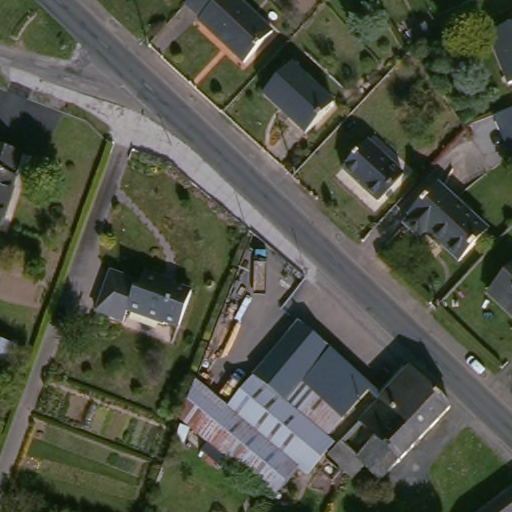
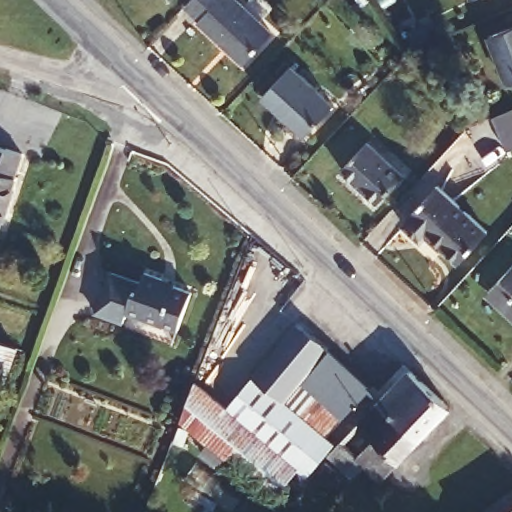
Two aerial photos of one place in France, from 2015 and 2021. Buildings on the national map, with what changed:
unchanged [(199,21),(200,19),(186,5),(191,0),(238,0),(273,32),(244,63),(199,21)]
unchanged [(431,37),(414,44),(408,31),(426,24),(431,37)]
unchanged [(509,84),(490,36),(512,27),(512,83),(509,84)]
unchanged [(306,135),(263,95),(292,64),(335,104),(306,135)]
unchanged [(507,151),(493,116),(512,109),(512,149),(507,151)]
unchanged [(379,202),(343,169),(368,141),(404,175),(379,202)]
unchanged [(11,177),(18,179),(1,231),(0,231),(0,149),(19,154),(11,177)]
unchanged [(405,225),(411,217),(410,216),(439,185),(488,231),(459,262),(428,233),(421,240),(405,225)]
unchanged [(483,295),(512,265),(512,322),(483,295)]
unchanged [(163,278),(161,281),(192,292),(179,328),(165,323),(164,325),(128,311),(124,322),(96,312),(111,272),(141,283),(145,272),(163,278)]
unchanged [(201,456),(208,448),(181,425),(196,386),(228,413),(253,382),(299,327),(330,352),(328,354),(371,394),(327,443),(334,449),(308,480),(299,472),(273,503),(229,465),(222,474),(201,456)]
unchanged [(0,382),(0,346),(11,349),(0,382)]
unchanged [(381,406),(410,374),(451,412),(421,444),(381,406)]
unchanged [(421,444),(381,486),(362,469),(351,481),(344,475),(329,460),(381,406),(421,444)]
unchanged [(482,512),(512,489),(512,512),(482,512)]

